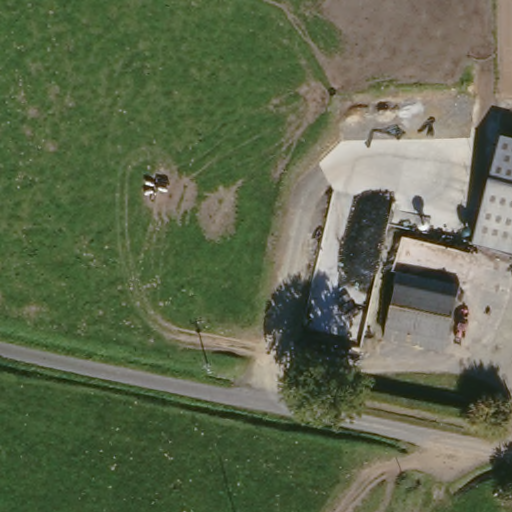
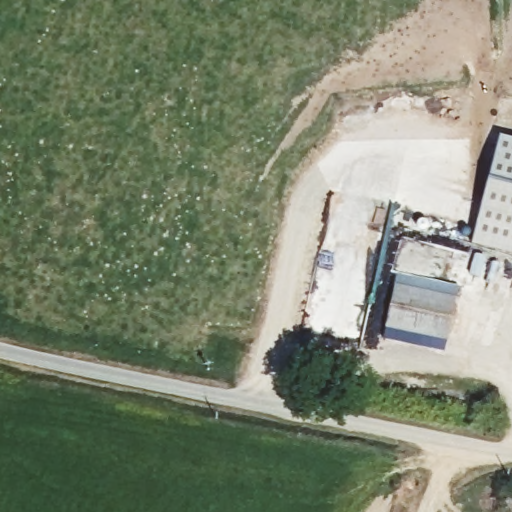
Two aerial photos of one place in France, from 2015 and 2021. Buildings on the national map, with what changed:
unchanged [(475,218),(497,138),(512,142),(512,235),(473,225),(475,218)]
unchanged [(512,235),(512,260),(467,247),(473,225),(512,235)]
unchanged [(394,282),(454,295),(442,349),(384,335),(394,282)]

